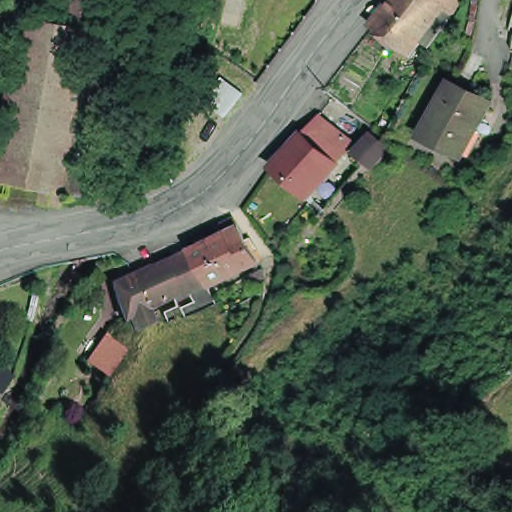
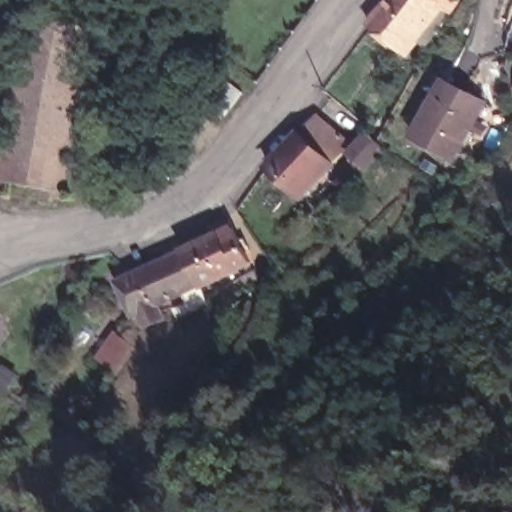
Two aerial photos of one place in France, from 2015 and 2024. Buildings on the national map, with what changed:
unchanged [(73,0),(101,0),(95,36),(68,27),(73,0)]
unchanged [(399,52),(383,37),(370,26),(368,25),(389,0),(459,0),(461,2),(451,14),(448,17),(440,10),(431,20),(425,27),(401,55),(399,52)]
unchanged [(51,187),(5,179),(9,155),(15,124),(7,122),(12,93),(20,94),(32,24),(68,27),(95,36),(89,72),(98,73),(96,87),(107,89),(99,137),(97,148),(98,148),(90,200),(79,199),(79,201),(78,203),(76,204),(75,205),(72,205),(70,204),(70,202),(68,200),(69,198),(66,197),(65,206),(48,202),(51,187)]
unchanged [(511,51),(512,44),(512,51),(511,51)]
unchanged [(246,94),(227,117),(207,100),(226,77),(246,94)]
unchanged [(455,162),(420,143),(451,89),(486,108),(455,162)]
unchanged [(257,182),(287,150),(295,141),(316,119),(347,149),(326,172),(318,180),(288,212),(257,182)]
unchanged [(0,139),(2,140),(0,147),(0,139)]
unchanged [(352,185),(336,169),(355,148),(370,164),(352,185)]
unchanged [(125,320),(110,285),(146,268),(160,262),(176,255),(213,237),(208,228),(220,222),(222,221),(226,231),(232,244),(242,266),(192,291),(191,288),(175,297),(161,303),(150,310),(155,323),(136,331),(130,318),(125,320)]
unchanged [(180,301),(185,312),(188,317),(167,327),(160,311),(180,301)]
unchanged [(118,331),(137,347),(122,372),(100,357),(118,331)]

